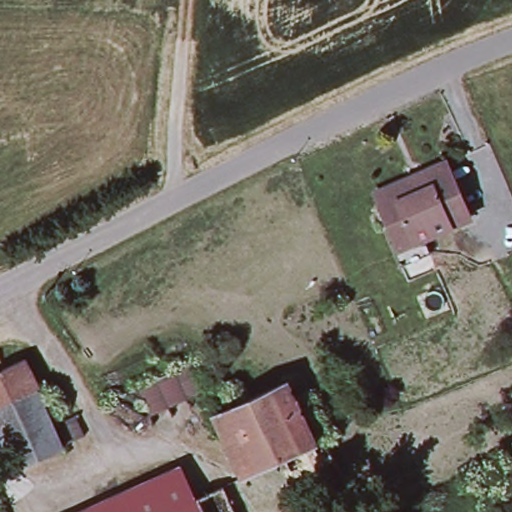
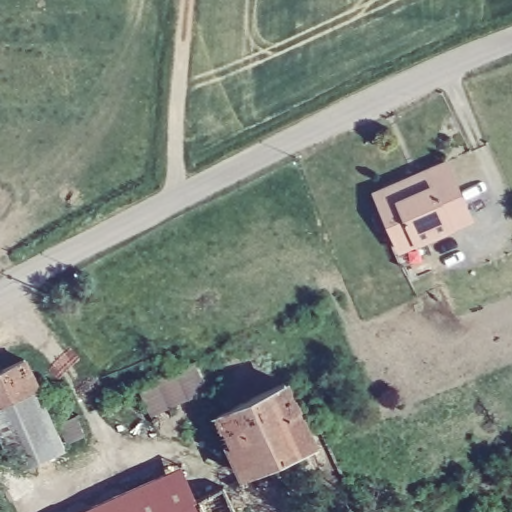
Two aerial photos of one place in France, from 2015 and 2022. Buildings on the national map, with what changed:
unchanged [(383,231),(390,229),(375,192),(382,189),(407,177),(425,170),(447,159),(473,216),(423,238),(430,254),(398,268),(383,231)]
unchanged [(63,441),(16,464),(0,430),(0,366),(22,355),(63,441)]
unchanged [(140,388),(199,361),(210,390),(152,417),(140,388)]
unchanged [(282,385),(292,407),(304,401),(312,419),(300,425),(317,461),(282,477),(276,462),(241,478),(213,416),(282,385)]
unchanged [(180,470),(193,500),(205,495),(213,512),(86,512),(180,470)]
unchanged [(512,482),(512,512),(492,512),(492,495),(503,496),(503,480),(512,482)]
unchanged [(222,486),(235,512),(213,512),(205,495),(222,486)]

